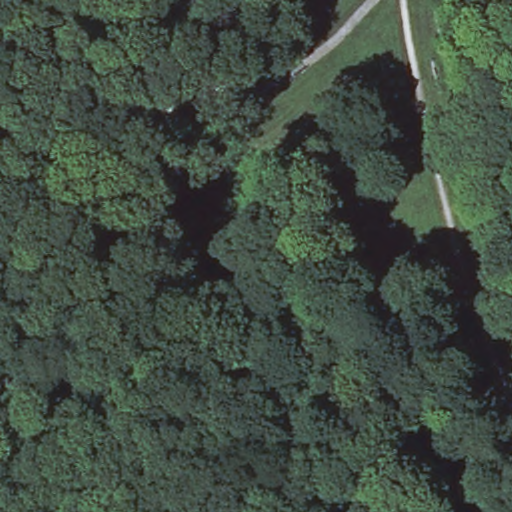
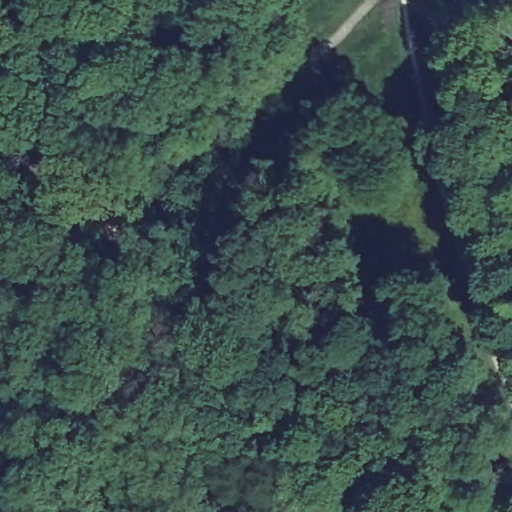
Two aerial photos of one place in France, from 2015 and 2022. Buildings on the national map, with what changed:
[]

